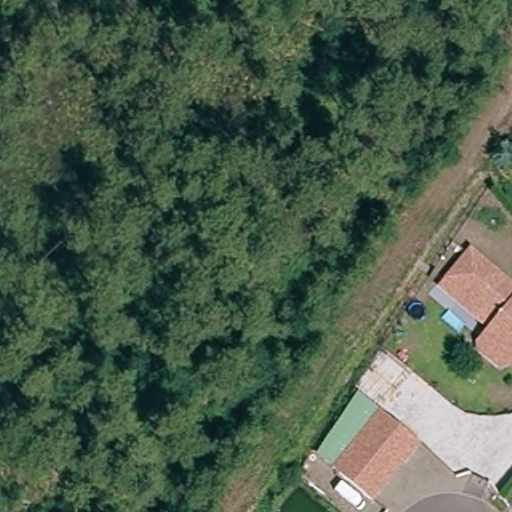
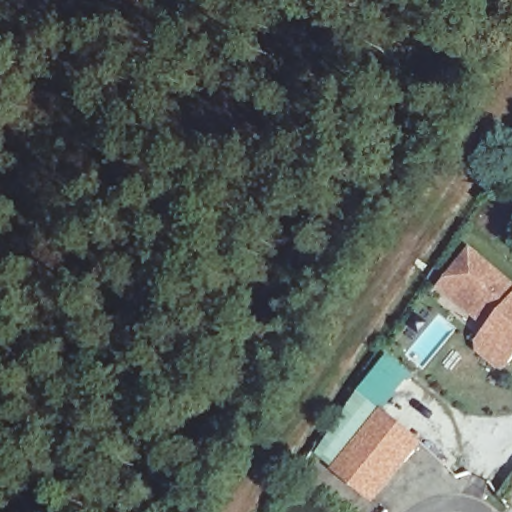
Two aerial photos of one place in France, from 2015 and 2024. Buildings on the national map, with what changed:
unchanged [(483,336),(492,325),(442,283),(450,275),(472,248),(512,282),(512,357),(510,359),(499,362),(481,347),(483,336)]
unchanged [(333,466),(381,408),(420,440),(372,498),(333,466)]

